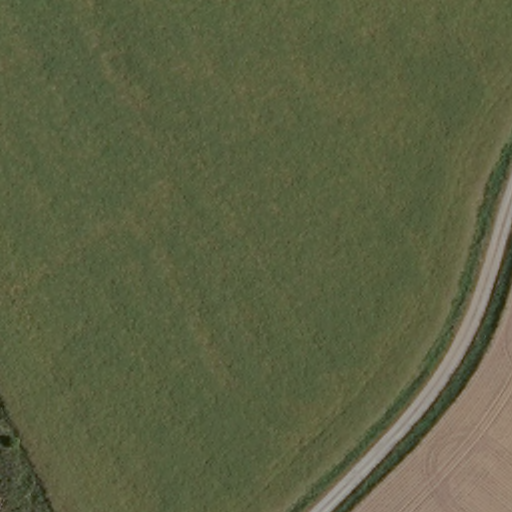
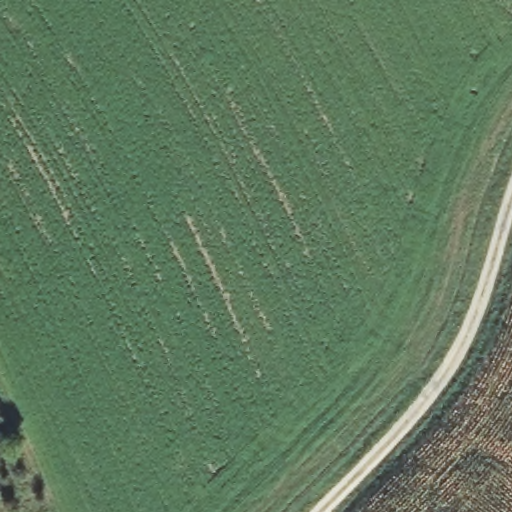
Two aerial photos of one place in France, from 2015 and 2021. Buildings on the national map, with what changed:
[]

